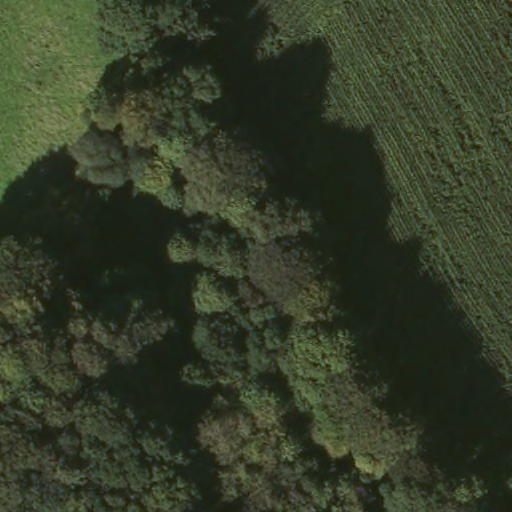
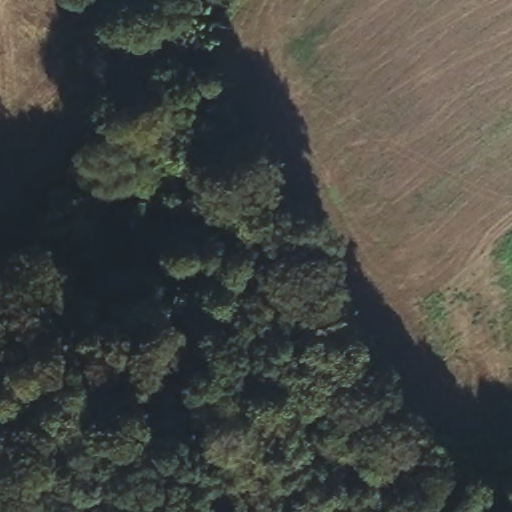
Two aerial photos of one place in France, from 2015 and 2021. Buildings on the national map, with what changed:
[]

